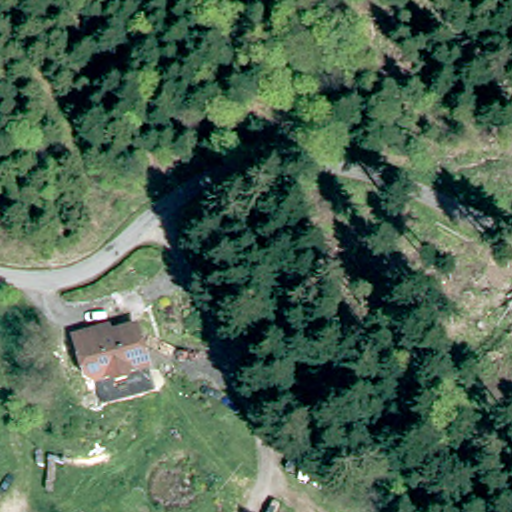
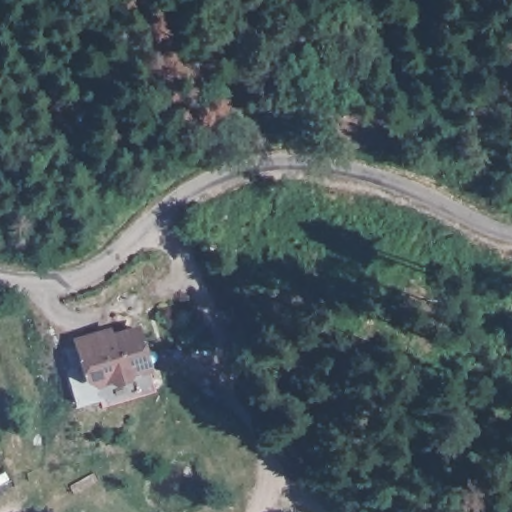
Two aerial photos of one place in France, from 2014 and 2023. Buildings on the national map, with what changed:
unchanged [(130,377),(132,382),(112,388),(110,383),(90,389),(77,342),(98,336),(109,333),(111,340),(138,332),(149,372),(130,377)]

